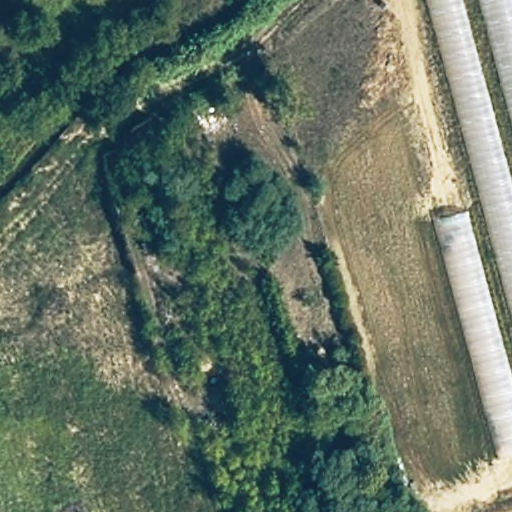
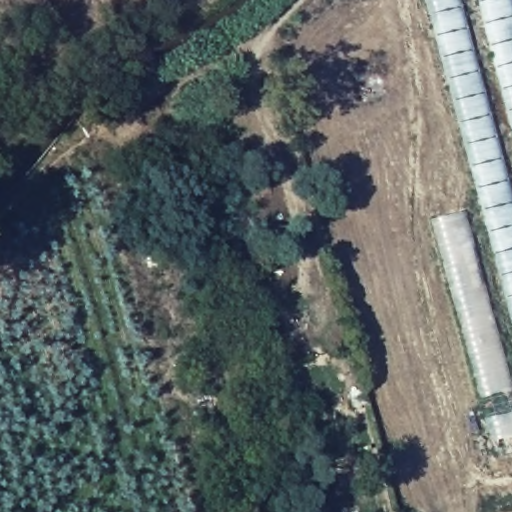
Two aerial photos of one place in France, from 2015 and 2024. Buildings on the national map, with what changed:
unchanged [(466,210),(424,0),(512,0),(512,457),(497,461),(430,221),(466,210)]

